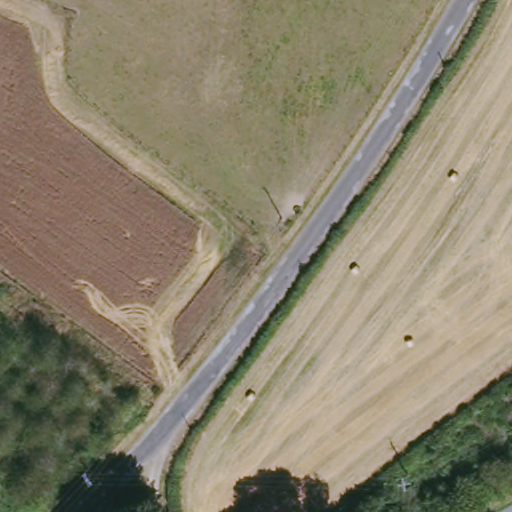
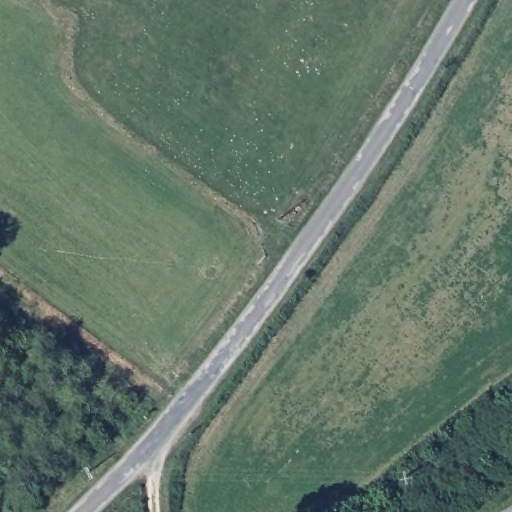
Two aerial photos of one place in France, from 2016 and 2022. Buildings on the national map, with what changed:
unchanged [(460,507),(462,512),(450,512),(460,507)]

